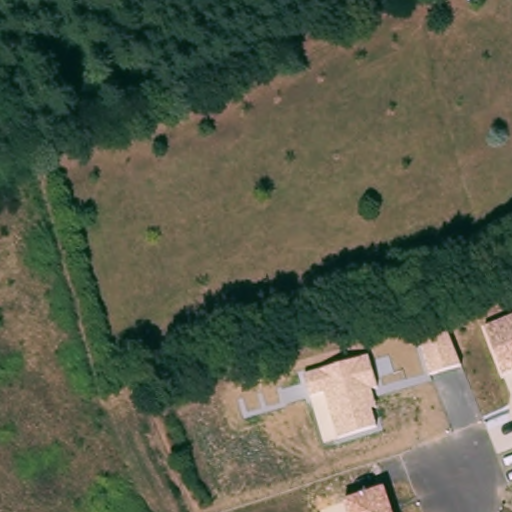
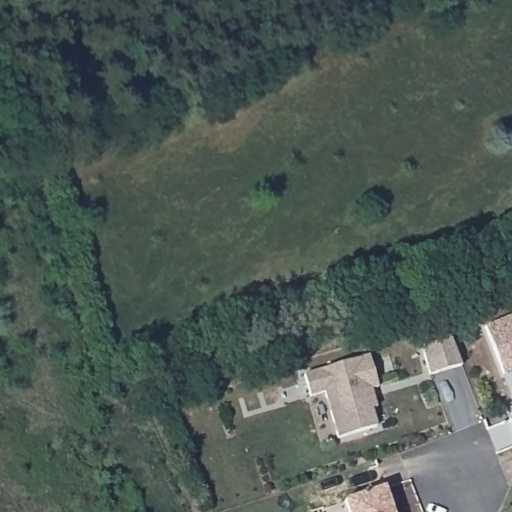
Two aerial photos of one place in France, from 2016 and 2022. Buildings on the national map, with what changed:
unchanged [(501,376),(483,327),(512,317),(512,372),(501,376)]
unchanged [(420,340),(448,331),(460,366),(431,375),(420,340)]
unchanged [(325,394),(310,398),(303,376),(370,357),(378,387),(371,388),(377,408),(372,410),(377,428),(338,438),(325,394)]
unchanged [(393,512),(347,512),(342,498),(385,487),(393,512)]

